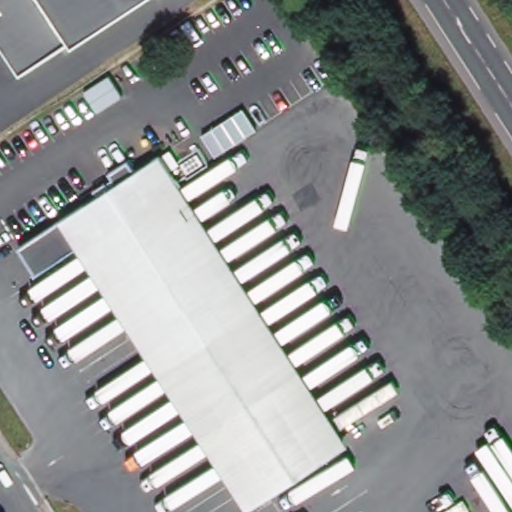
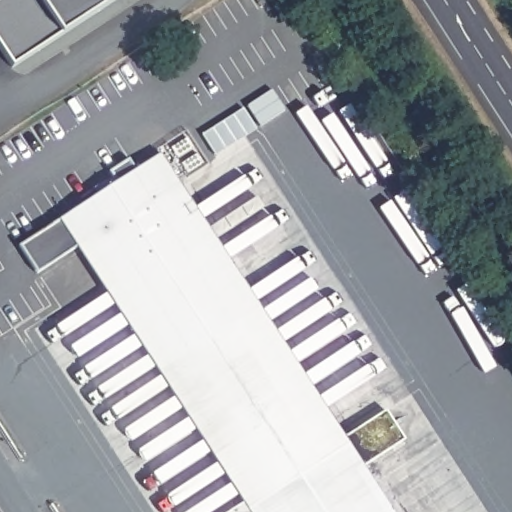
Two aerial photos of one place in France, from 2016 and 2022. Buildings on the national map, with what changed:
unchanged [(0,47),(0,0),(116,0),(13,67),(0,47)]
unchanged [(59,220),(161,154),(303,370),(200,436),(76,247),(36,272),(20,246),(59,220)]
unchanged [(303,370),(348,445),(247,512),(243,512),(200,436),(303,370)]
new [(385,411),(404,440),(362,465),(393,512),(247,512),(348,445),(344,439),(385,411)]
new [(239,505),(243,512),(228,512),(239,505)]

